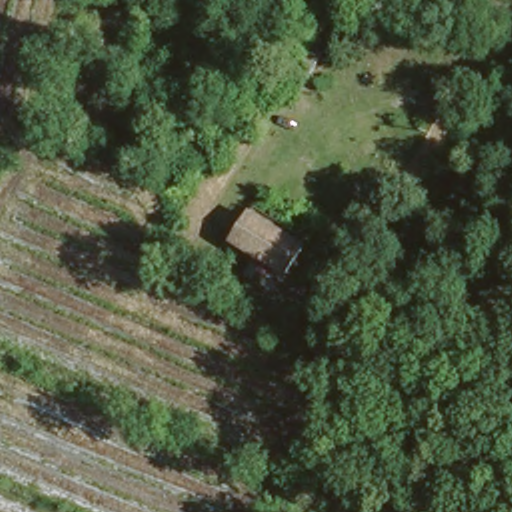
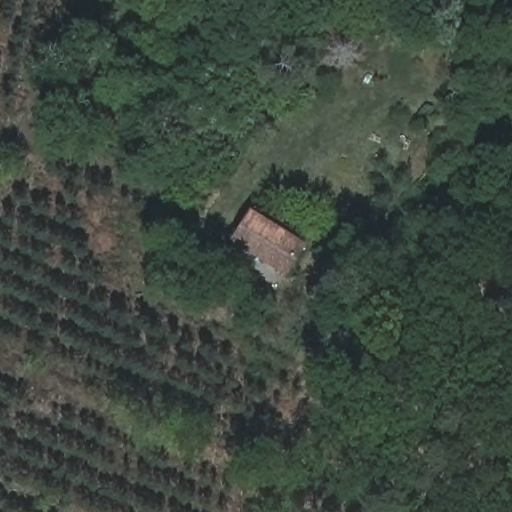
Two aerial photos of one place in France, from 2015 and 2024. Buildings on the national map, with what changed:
unchanged [(247,214),(254,202),(323,245),(306,278),(208,221),(223,199),(247,214)]

